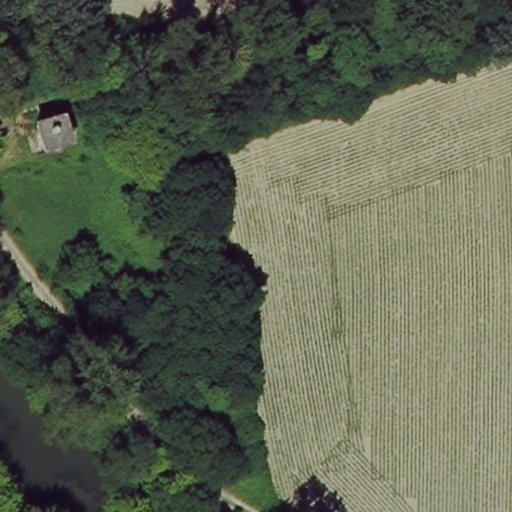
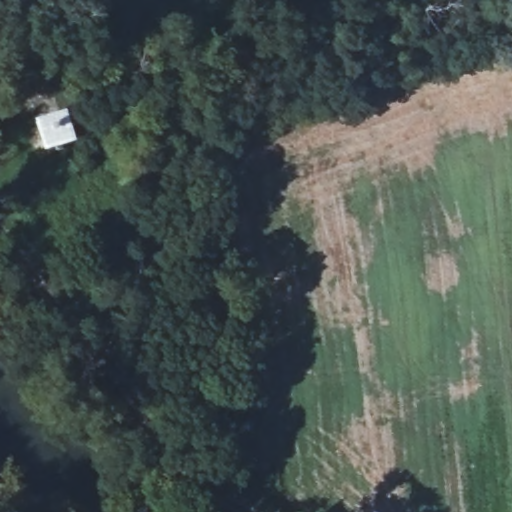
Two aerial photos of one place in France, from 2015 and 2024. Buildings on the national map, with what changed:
unchanged [(70,118),(82,114),(91,139),(40,155),(32,131),(48,126),(70,118)]

